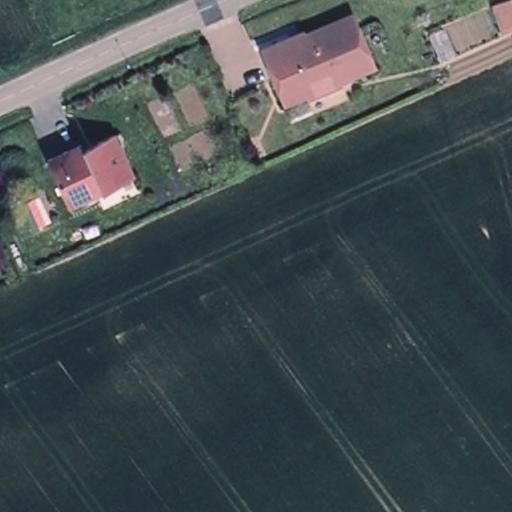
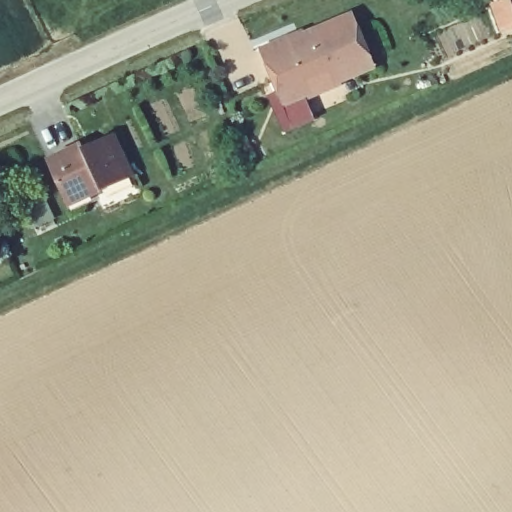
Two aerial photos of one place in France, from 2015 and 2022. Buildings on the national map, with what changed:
unchanged [(512,0),(512,28),(500,33),(490,4),(502,0),(512,0)]
unchanged [(352,9),(375,71),(280,109),(257,47),(352,9)]
unchanged [(72,215),(65,202),(44,162),(83,141),(86,147),(113,132),(133,172),(85,197),(89,205),(72,215)]

